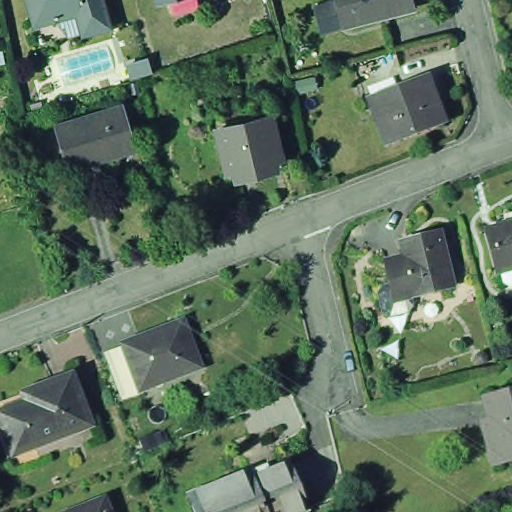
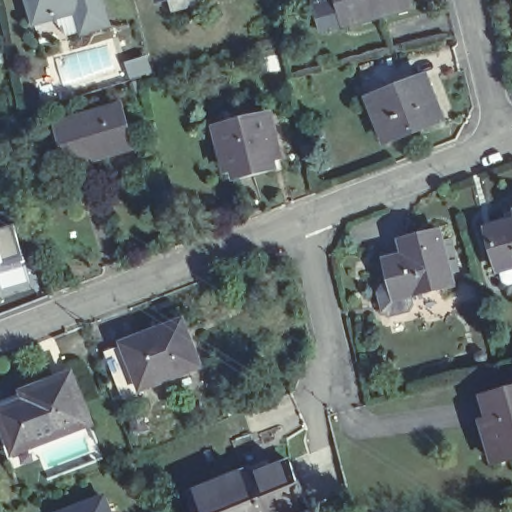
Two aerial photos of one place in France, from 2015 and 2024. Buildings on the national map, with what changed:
unchanged [(35,0),(106,0),(112,20),(89,27),(73,31),(46,39),(39,17),(35,0)]
unchanged [(175,0),(203,0),(203,5),(178,11),(175,0)]
unchanged [(415,0),(421,21),(358,39),(348,0),(415,0)]
unchanged [(131,66),(146,61),(149,71),(134,76),(131,66)]
unchanged [(443,119),(387,140),(373,104),(371,98),(400,86),(426,76),(443,119)]
unchanged [(65,124),(129,105),(141,147),(78,166),(65,124)]
unchanged [(231,155),(224,131),(233,129),(281,117),(289,150),(290,157),(281,160),(284,166),(245,176),(243,170),(235,172),(231,155)]
unchanged [(500,236),(504,235),(502,226),(512,224),(512,275),(509,275),(500,236)]
new [(13,225),(33,285),(0,294),(0,292),(0,229),(13,225)]
unchanged [(409,315),(391,320),(386,315),(379,295),(384,287),(394,285),(389,263),(406,258),(402,244),(441,234),(454,286),(411,298),(414,306),(409,315)]
unchanged [(118,345),(137,337),(191,316),(207,360),(154,380),(134,388),(118,345)]
unchanged [(98,425),(20,455),(5,417),(35,405),(32,397),(43,392),(80,377),(98,425)]
unchanged [(490,427),(499,424),(493,401),(502,398),(512,395),(512,462),(501,465),(490,427)]
unchanged [(253,473),(256,480),(293,466),(311,511),(310,512),(198,512),(191,497),(253,473)]
unchanged [(74,510),(108,496),(114,512),(69,512),(74,510)]

